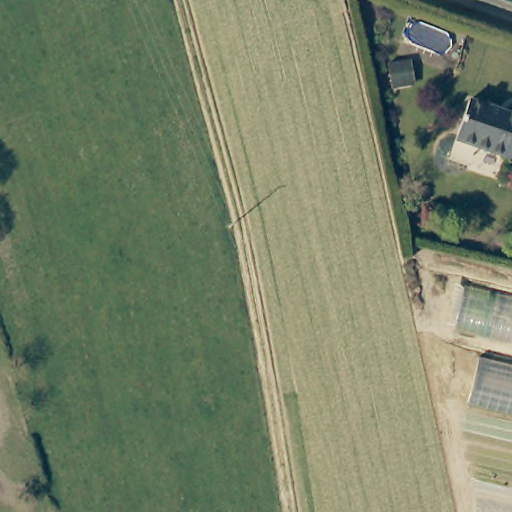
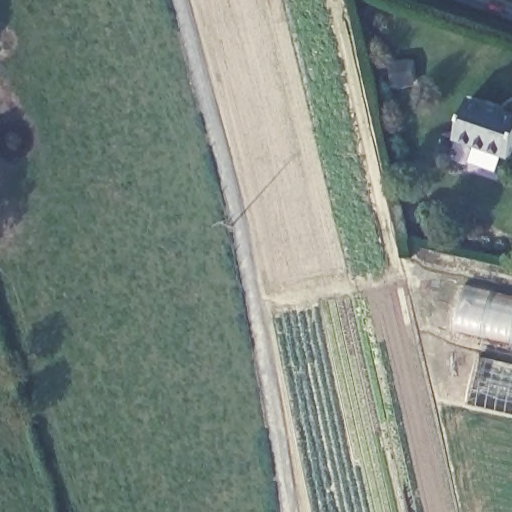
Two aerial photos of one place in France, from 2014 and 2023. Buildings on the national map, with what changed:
unchanged [(458,141),(470,99),(512,114),(512,158),(458,141)]
unchanged [(442,325),(453,279),(512,294),(512,342),(442,325)]
unchanged [(465,402),(478,351),(512,360),(512,414),(465,402)]

